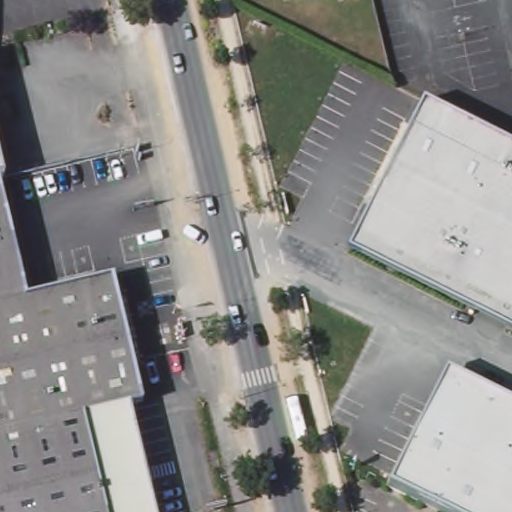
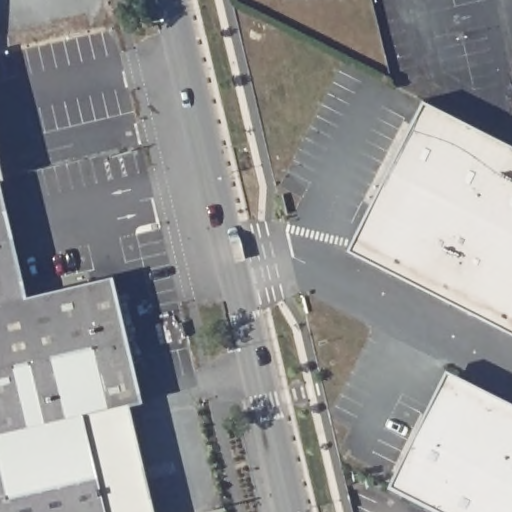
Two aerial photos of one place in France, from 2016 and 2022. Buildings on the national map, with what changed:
unchanged [(424,101),(512,145),(512,332),(350,249),(424,101)]
unchanged [(23,296),(108,276),(137,401),(122,405),(148,512),(0,512),(0,198),(23,296)]
unchanged [(445,371),(512,404),(512,512),(440,512),(385,486),(445,371)]

